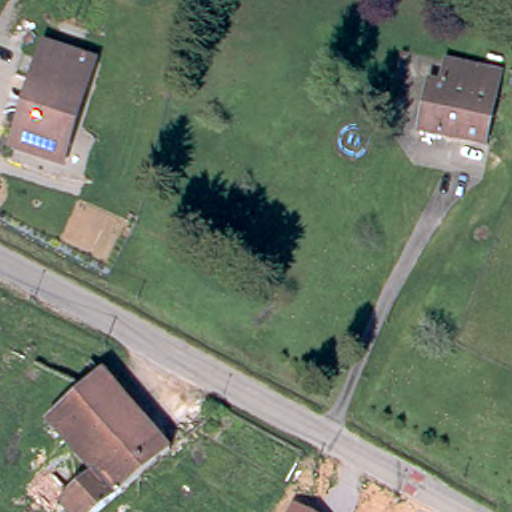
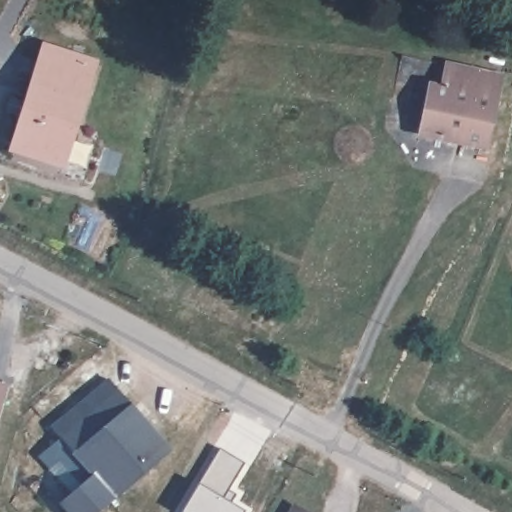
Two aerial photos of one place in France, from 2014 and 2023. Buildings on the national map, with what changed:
unchanged [(54,159),(4,143),(35,45),(85,61),(54,159)]
unchanged [(475,154),(413,141),(422,90),(431,91),(435,73),(490,84),(475,154)]
unchanged [(70,454),(38,422),(73,388),(95,368),(168,445),(92,512),(67,512),(55,500),(44,510),(31,494),(70,454)]
new [(0,407),(0,382),(7,384),(0,407)]
new [(220,448),(245,463),(225,498),(231,502),(236,493),(237,494),(232,502),(246,511),(245,512),(182,512),(220,448)]
new [(230,489),(236,493),(231,502),(225,498),(230,489)]
unchanged [(309,512),(289,512),(293,504),(309,512)]

